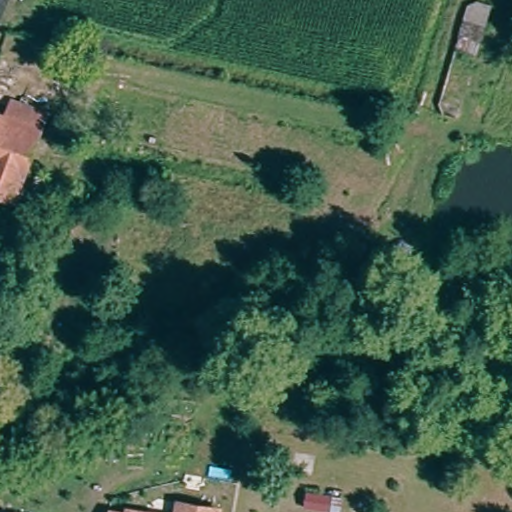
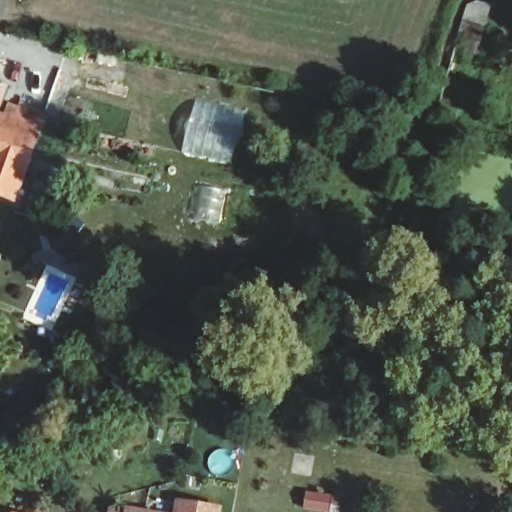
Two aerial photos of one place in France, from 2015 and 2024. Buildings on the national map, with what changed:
unchanged [(458,119),(444,115),(439,106),(468,9),(482,3),(491,6),(458,119)]
unchanged [(77,75),(74,85),(64,81),(67,72),(77,75)]
new [(195,97),(247,109),(232,164),(180,152),(195,97)]
unchanged [(16,201),(0,196),(0,114),(6,116),(12,100),(48,114),(16,201)]
unchanged [(179,503),(219,510),(219,512),(177,512),(179,503)]
unchanged [(128,510),(137,512),(128,512),(128,510)]

